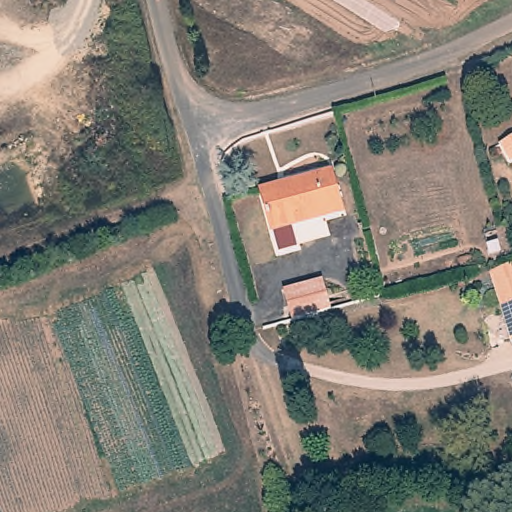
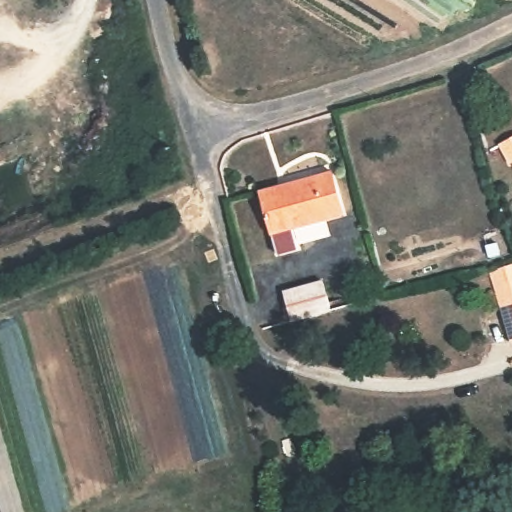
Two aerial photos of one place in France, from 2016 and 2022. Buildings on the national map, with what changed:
unchanged [(509,162),(501,142),(505,140),(512,138),(512,161),(509,162)]
unchanged [(346,210),(296,227),(303,247),(281,254),(259,192),(331,167),(346,210)]
unchanged [(512,265),(512,345),(511,345),(487,274),(487,273),(512,265)]
unchanged [(270,293),(307,280),(317,309),(282,321),(279,322),(270,293)]

